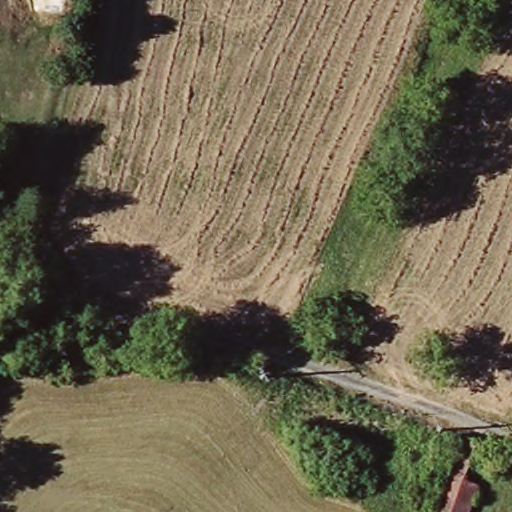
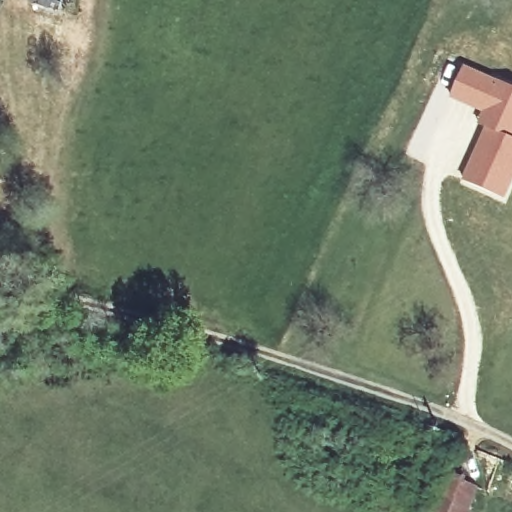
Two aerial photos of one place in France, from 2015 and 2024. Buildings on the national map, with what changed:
new [(469,66),(504,81),(505,80),(512,83),(512,188),(508,197),(469,179),(492,128),(484,124),(490,110),(456,94),(469,66)]
unchanged [(475,440),(460,480),(477,488),(467,512),(433,512),(462,435),(475,440)]
unchanged [(508,459),(503,470),(482,461),(482,457),(477,454),(481,447),(508,459)]

